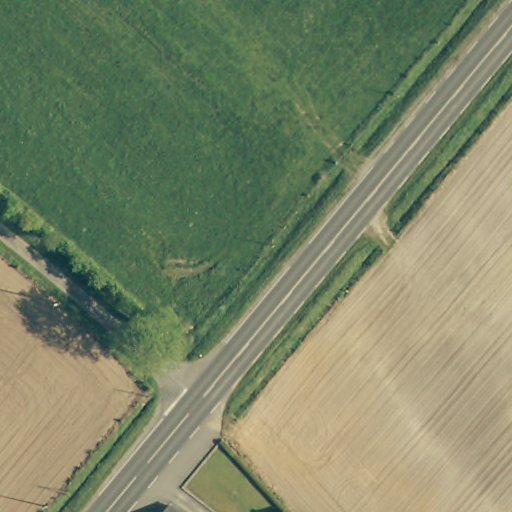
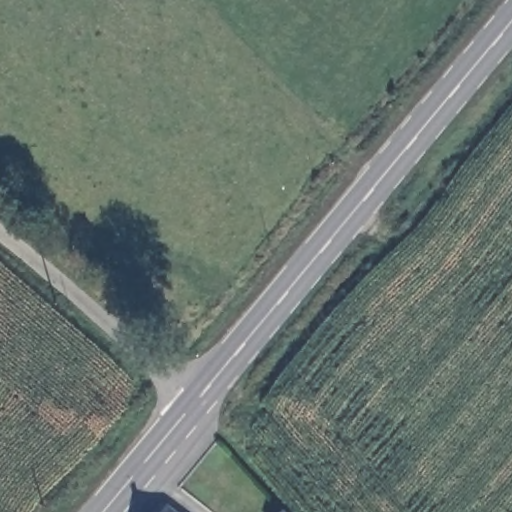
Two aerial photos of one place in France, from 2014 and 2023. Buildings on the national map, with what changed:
unchanged [(180,512),(168,512),(173,506),(180,512)]

